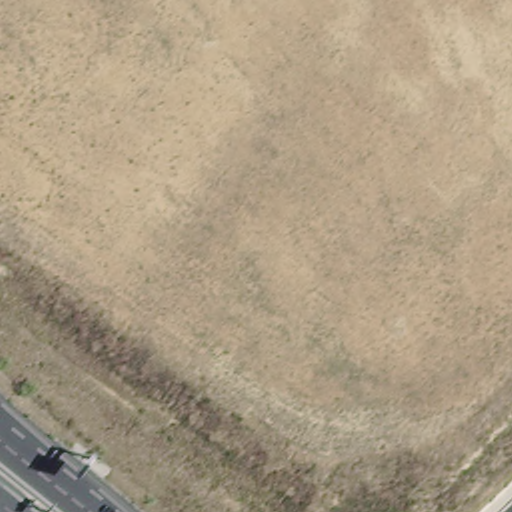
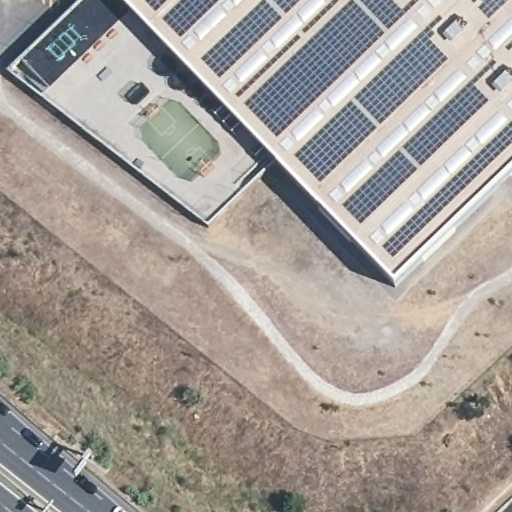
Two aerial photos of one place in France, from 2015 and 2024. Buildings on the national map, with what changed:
new [(123,2),(273,160),(209,225),(11,74),(85,0),(125,0),(123,2)]
new [(512,175),(395,289),(273,160),(123,2),(125,0),(512,0),(512,175)]

